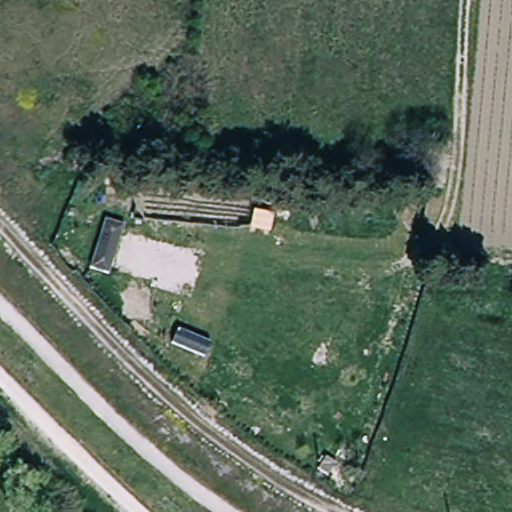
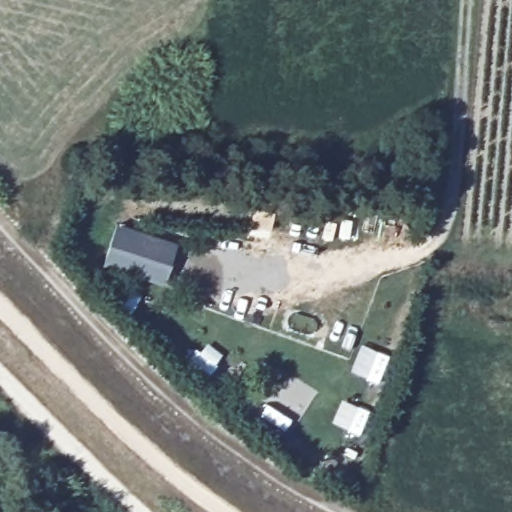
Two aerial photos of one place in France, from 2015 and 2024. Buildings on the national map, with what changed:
unchanged [(407,161),(396,159),(397,147),(408,148),(407,161)]
new [(178,244),(163,286),(103,266),(116,223),(178,244)]

